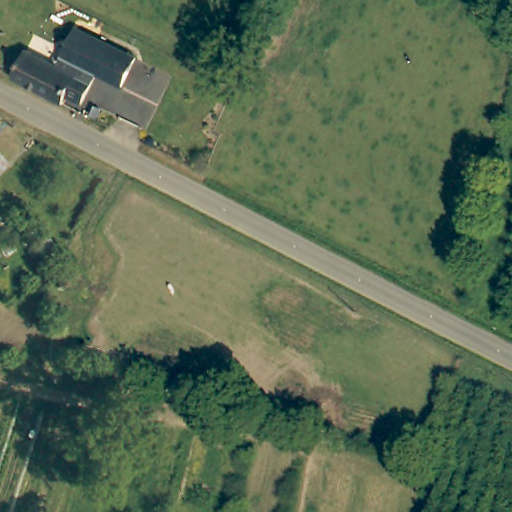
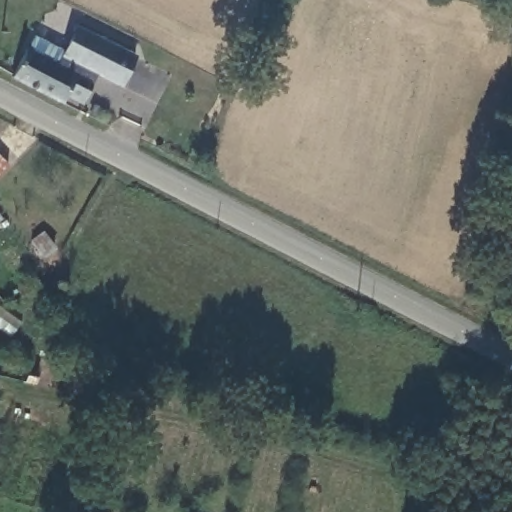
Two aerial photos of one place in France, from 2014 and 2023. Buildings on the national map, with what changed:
unchanged [(72,28),(130,58),(115,86),(90,72),(57,55),(72,28)]
unchanged [(20,49),(51,66),(57,55),(90,72),(75,102),(60,95),(56,101),(6,75),(20,49)]
unchanged [(0,236),(0,218),(10,232),(0,236)]

